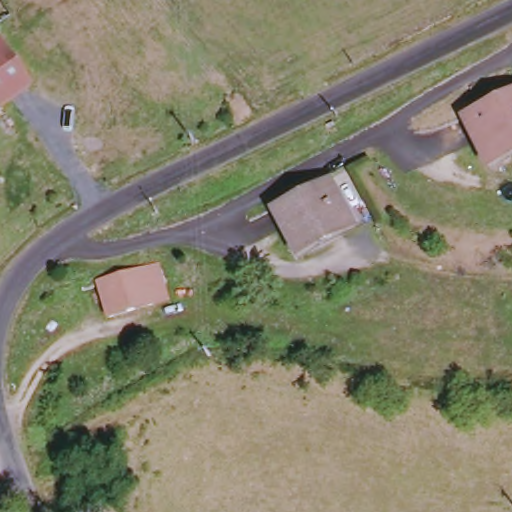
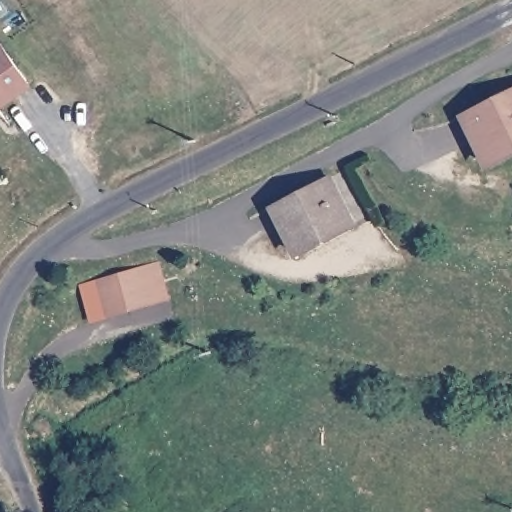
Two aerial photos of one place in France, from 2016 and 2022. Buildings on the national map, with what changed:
unchanged [(26,87),(0,106),(0,52),(26,87)]
unchanged [(482,158),(464,114),(512,92),(512,158),(487,169),(482,158)]
unchanged [(286,258),(267,214),(338,179),(358,223),(286,258)]
unchanged [(102,284),(146,273),(159,271),(166,306),(153,309),(108,318),(102,284)]

